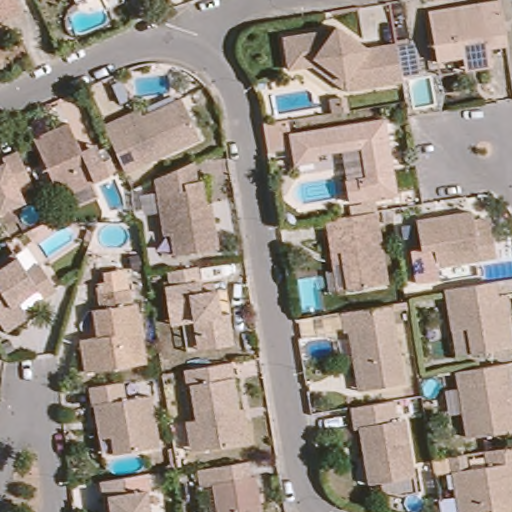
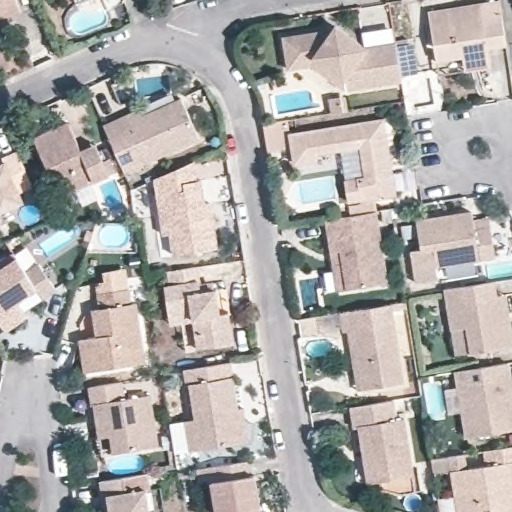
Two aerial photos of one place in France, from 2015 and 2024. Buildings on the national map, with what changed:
unchanged [(20,0),(20,1),(22,8),(0,16),(0,0),(20,0)]
unchanged [(467,57),(441,61),(432,9),(481,0),(504,0),(511,45),(493,48),(494,52),(496,67),(470,72),(467,57)]
unchanged [(293,69),(288,39),(328,31),(334,36),(340,26),(371,47),(400,43),(407,80),(351,90),(315,65),(293,69)]
unchanged [(129,173),(109,127),(123,121),(142,111),(145,118),(186,98),(204,137),(129,173)]
unchanged [(350,175),(363,174),(370,172),(365,142),(322,149),(323,155),(299,159),(294,130),(384,115),(386,123),(389,123),(400,188),(366,194),(354,196),(350,175)]
unchanged [(92,182),(65,195),(53,171),(50,164),(38,136),(72,120),(85,148),(97,141),(101,149),(112,173),(92,182)]
unchanged [(7,156),(4,150),(17,144),(34,179),(21,185),(25,194),(0,205),(0,158),(7,156)]
unchanged [(176,253),(174,234),(167,235),(164,215),(158,179),(200,160),(202,176),(207,175),(213,175),(216,198),(223,246),(176,253)]
unchanged [(480,228),(496,226),(500,256),(441,265),(439,252),(427,253),(420,219),(442,215),(451,214),(477,209),(480,228)]
unchanged [(330,252),(324,219),(374,211),(377,230),(387,285),(347,292),(337,294),(330,252)]
unchanged [(80,259),(86,240),(92,241),(85,261),(80,259)]
unchanged [(7,328),(2,322),(0,318),(0,260),(15,251),(27,270),(40,261),(57,287),(43,295),(37,287),(20,299),(25,307),(30,313),(7,328)]
unchanged [(197,338),(195,321),(171,325),(170,318),(166,287),(173,286),(170,270),(199,266),(200,277),(203,291),(217,289),(221,314),(229,313),(234,345),(208,349),(199,351),(197,338)]
unchanged [(496,289),(500,288),(505,287),(509,310),(512,330),(512,339),(470,346),(466,320),(451,323),(444,283),(493,274),(496,289)]
unchanged [(90,335),(98,333),(95,312),(95,306),(102,306),(100,292),(130,287),(132,301),(137,301),(138,309),(142,332),(146,358),(144,360),(105,366),(94,367),(87,369),(84,343),(83,336),(90,335)]
unchanged [(349,325),(344,326),(341,311),(391,303),(402,377),(363,383),(358,384),(349,325)]
unchanged [(189,385),(185,385),(183,369),(231,361),(238,407),(243,406),(249,439),(244,440),(200,447),(191,448),(185,419),(195,418),(189,385)]
unchanged [(512,392),(512,398),(507,398),(511,427),(466,435),(455,370),(507,362),(509,377),(512,392)]
unchanged [(94,403),(92,403),(89,385),(122,380),(125,397),(150,394),(158,445),(102,454),(99,436),(97,420),(94,403)]
unchanged [(359,426),(355,406),(400,399),(402,417),(409,417),(418,473),(373,481),(365,426),(359,426)]
unchanged [(496,508),(471,512),(464,512),(457,469),(489,465),(486,449),(512,445),(512,512),(497,512),(496,508)]
unchanged [(255,480),(260,479),(266,512),(220,512),(216,486),(204,488),(201,472),(253,464),(255,480)]
unchanged [(102,497),(99,479),(148,471),(152,489),(148,489),(152,512),(104,512),(102,497)]

